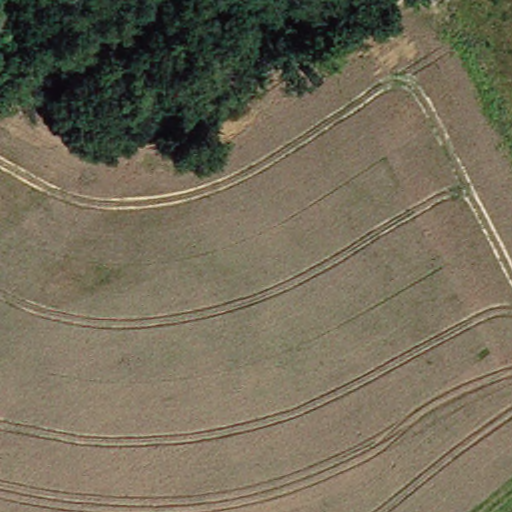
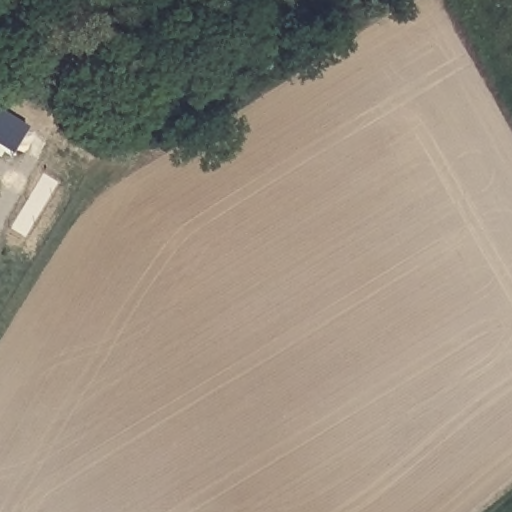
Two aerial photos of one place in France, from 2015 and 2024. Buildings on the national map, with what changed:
new [(8,155),(0,150),(0,113),(24,129),(8,155)]

